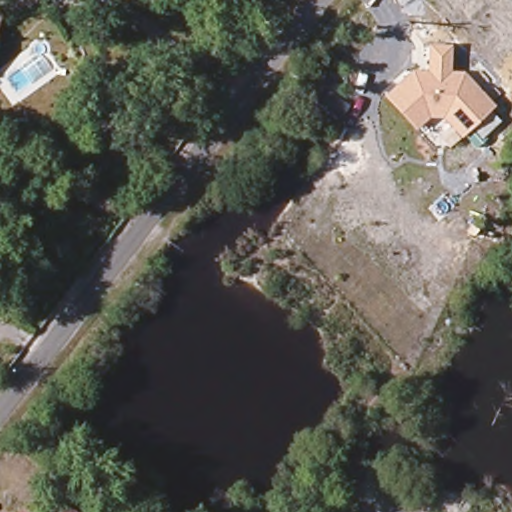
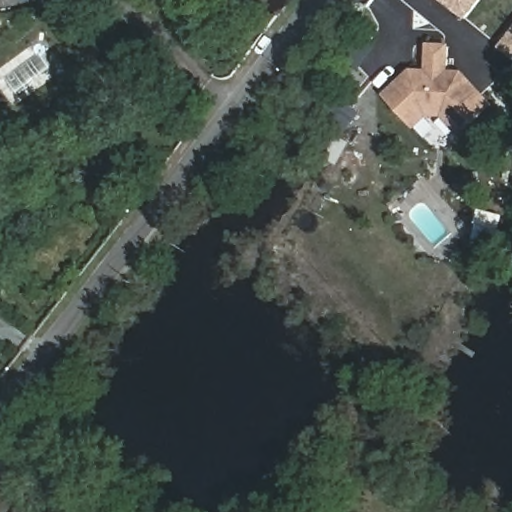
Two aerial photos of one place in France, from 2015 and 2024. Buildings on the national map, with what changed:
new [(483,0),(465,22),(438,0),(483,0)]
new [(512,36),(512,57),(502,49),(512,36)]
unchanged [(441,119),(429,117),(416,129),(385,95),(411,71),(426,71),(427,46),(451,46),(450,71),(462,72),(494,107),(459,137),(441,119)]
unchanged [(58,497),(78,512),(49,512),(58,497)]
unchanged [(23,507),(29,512),(19,512),(23,507)]

